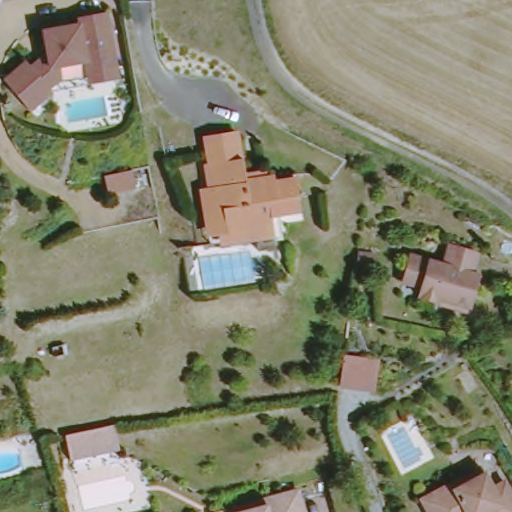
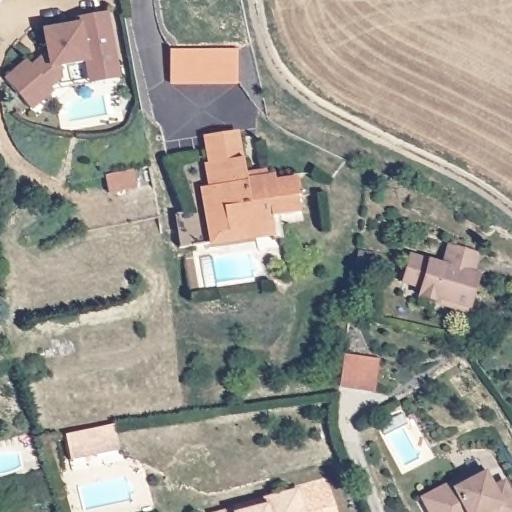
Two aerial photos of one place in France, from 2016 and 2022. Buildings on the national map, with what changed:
unchanged [(93,86),(91,70),(90,63),(64,66),(65,80),(53,89),(57,95),(33,115),(6,82),(30,64),(33,67),(48,55),(44,33),(80,25),(80,19),(110,14),(119,68),(121,83),(93,86)]
new [(170,49),(238,48),(238,83),(170,84),(170,49)]
unchanged [(265,241),(261,242),(212,249),(203,197),(213,195),(206,167),(211,166),(207,138),(237,135),(241,161),(248,161),(250,176),(266,174),(267,181),(276,180),(277,184),(301,183),(305,199),(296,200),(298,217),(280,218),(282,239),(265,241)]
unchanged [(417,256),(450,266),(457,245),(487,254),(482,276),(488,278),(475,317),(458,311),(460,307),(444,301),(441,306),(425,299),(428,292),(409,284),(417,256)]
unchanged [(375,255),(372,272),(357,270),(360,253),(375,255)]
unchanged [(377,360),(373,391),(338,387),(342,355),(377,360)]
unchanged [(113,425),(118,449),(70,460),(63,433),(113,425)]
unchanged [(476,477),(488,470),(492,476),(498,490),(511,484),(512,486),(512,512),(433,512),(427,500),(476,477)]
unchanged [(238,504),(309,492),(312,512),(239,512),(238,504)]

